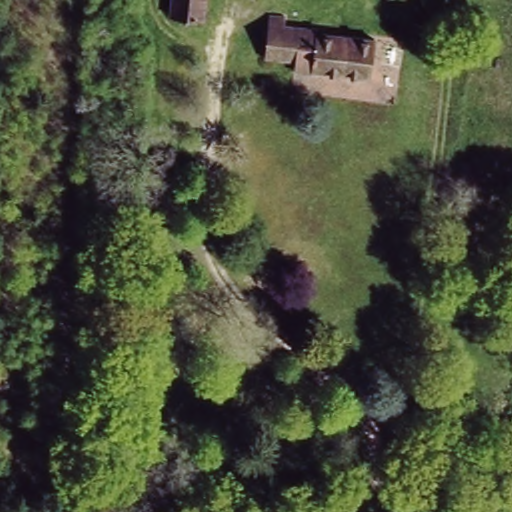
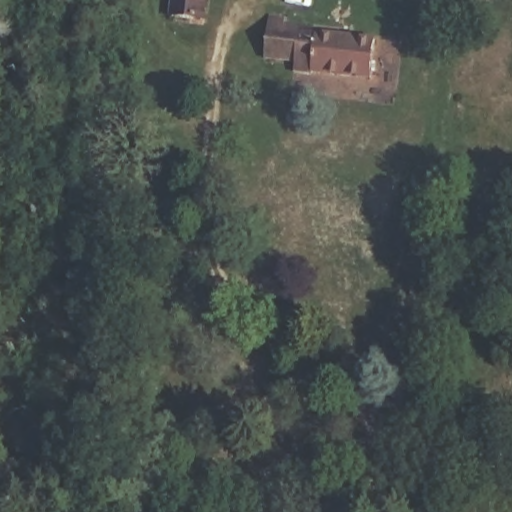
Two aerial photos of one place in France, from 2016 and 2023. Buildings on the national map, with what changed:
unchanged [(172,0),(207,0),(205,19),(170,16),(172,0)]
unchanged [(377,80),(295,71),(295,63),(266,60),(271,16),(378,33),(377,80)]

